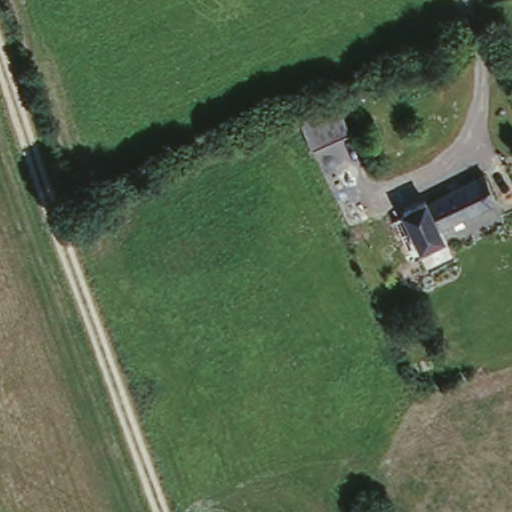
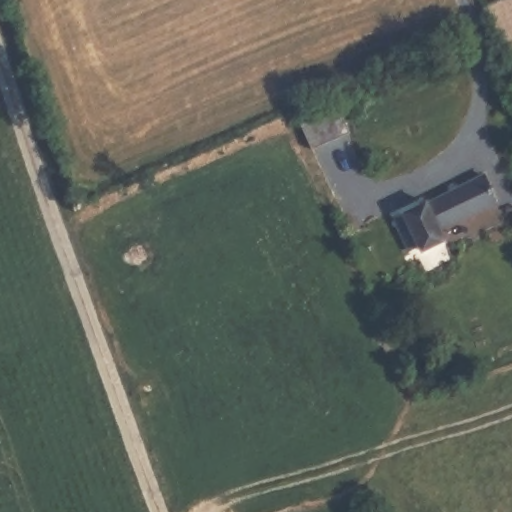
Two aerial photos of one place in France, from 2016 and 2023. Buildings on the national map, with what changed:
unchanged [(337,102),(349,128),(309,145),(298,120),(337,102)]
unchanged [(497,198),(440,222),(445,234),(421,245),(405,206),(427,195),(430,199),(488,173),(497,198)]

